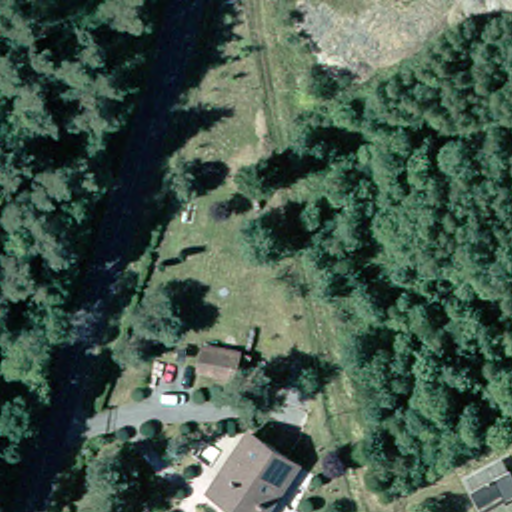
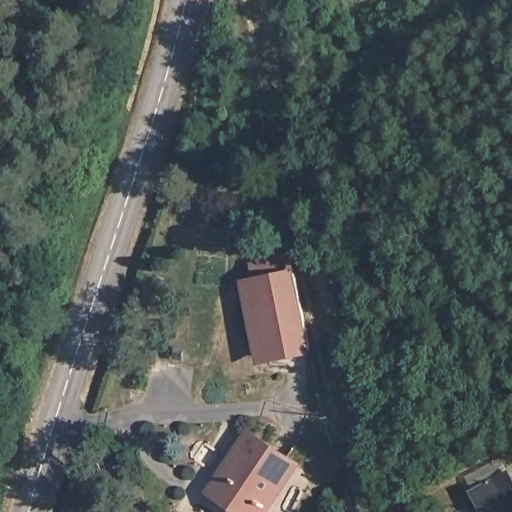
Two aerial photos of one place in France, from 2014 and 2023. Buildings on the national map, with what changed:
new [(295,268),(312,353),(259,365),(242,280),(295,268)]
demolished [(211,376),(212,355),(243,358),(242,379),(211,376)]
unchanged [(294,457),(268,497),(276,503),(270,512),(251,512),(221,492),(234,474),(236,476),(247,460),(240,456),(256,432),(294,457)]
unchanged [(480,493),(512,477),(512,500),(489,511),(480,493)]

